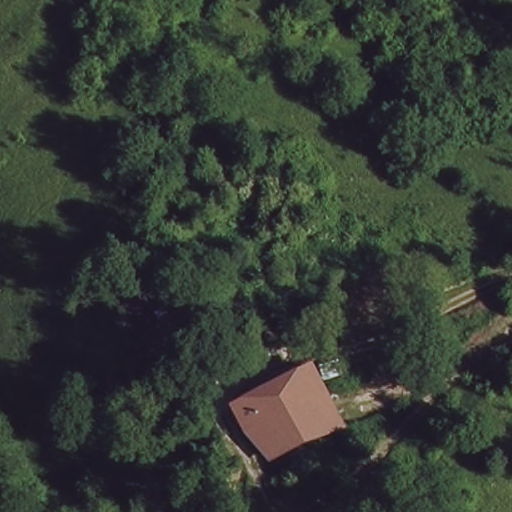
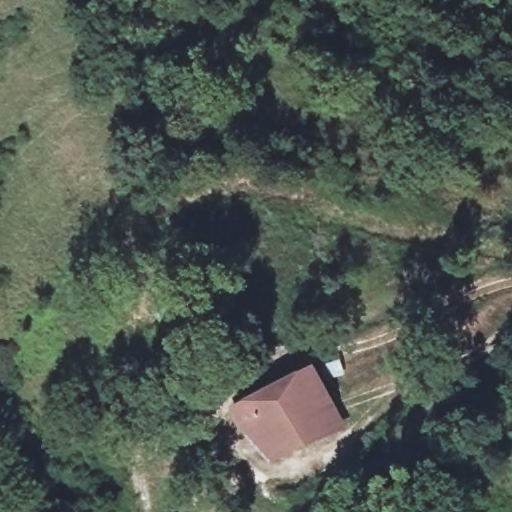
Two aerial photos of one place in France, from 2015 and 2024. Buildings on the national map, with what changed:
unchanged [(268,465),(232,407),(316,363),(348,430),(268,465)]

